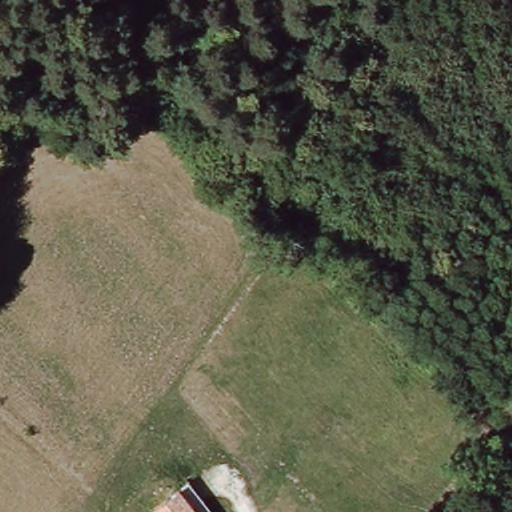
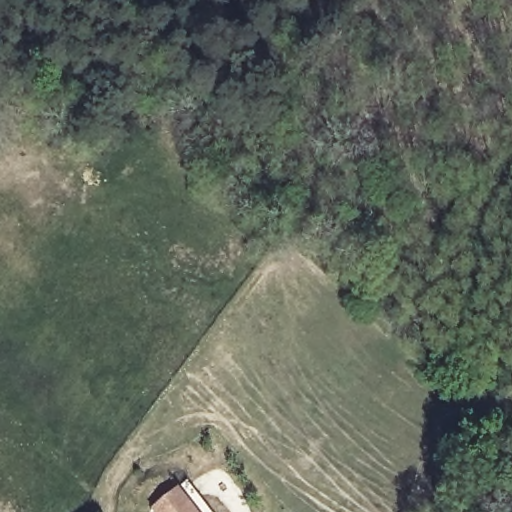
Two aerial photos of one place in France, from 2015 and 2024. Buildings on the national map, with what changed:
unchanged [(213,512),(153,512),(152,509),(187,481),(213,512)]

